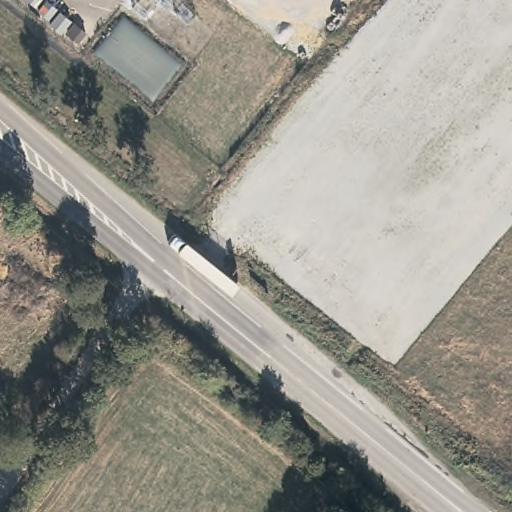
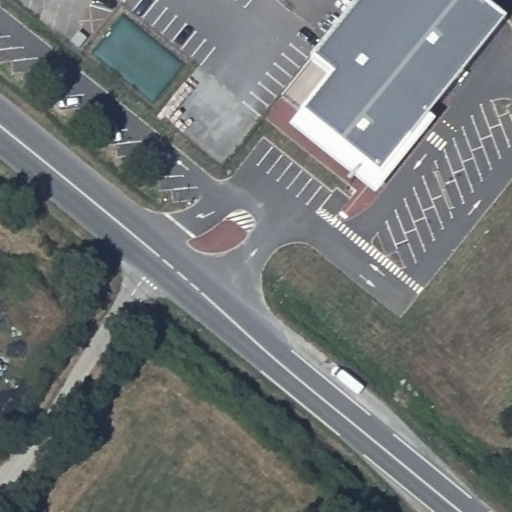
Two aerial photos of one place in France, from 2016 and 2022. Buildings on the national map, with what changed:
new [(435,120),(375,196),(289,126),(302,113),(332,75),(312,58),(357,0),(483,0),(507,20),(429,116),(435,120)]

